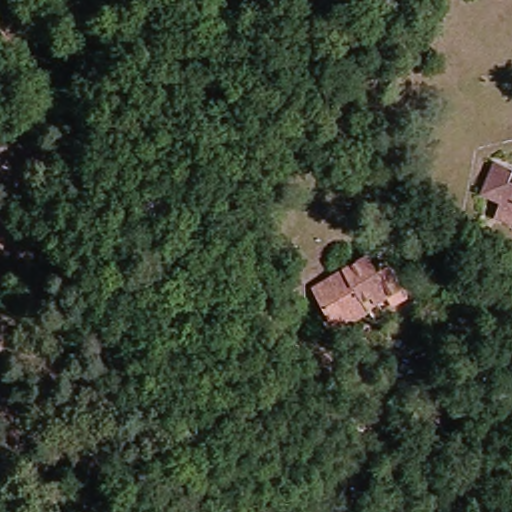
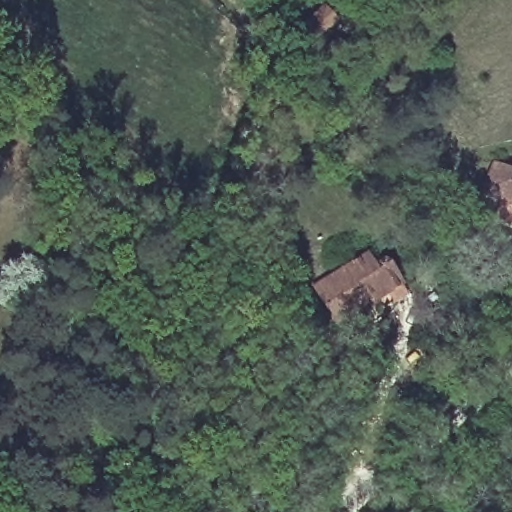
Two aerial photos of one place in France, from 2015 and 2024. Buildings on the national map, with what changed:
unchanged [(311,42),(300,30),(323,10),(334,22),(311,42)]
unchanged [(494,216),(502,199),(484,191),(496,160),(512,165),(512,176),(511,180),(512,181),(512,224),(494,216)]
unchanged [(387,307),(382,295),(371,300),(373,305),(356,313),(354,309),(338,316),(320,280),(375,253),(382,265),(394,258),(406,285),(411,296),(387,307)]

